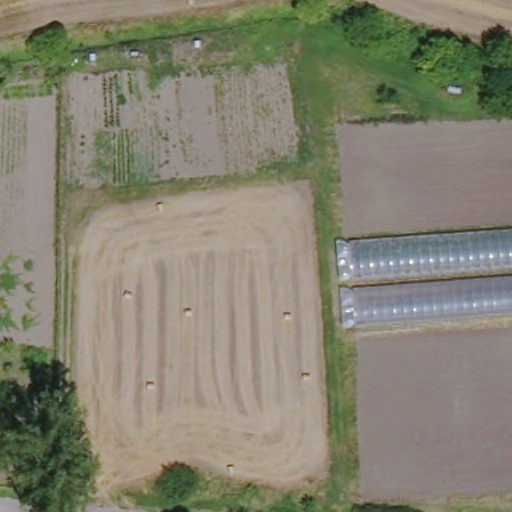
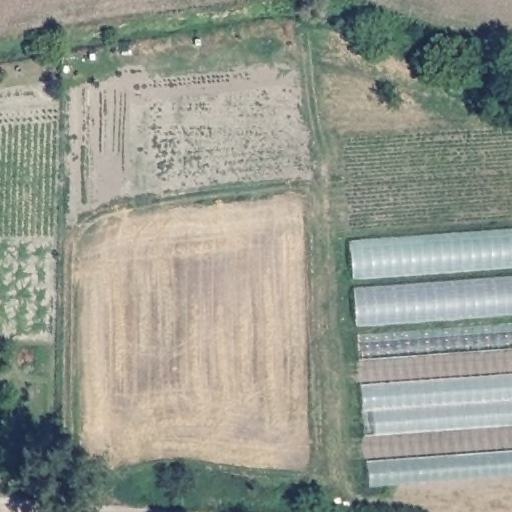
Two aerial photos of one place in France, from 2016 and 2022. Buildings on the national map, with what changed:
unchanged [(512,229),(512,268),(353,280),(351,240),(512,229)]
unchanged [(357,327),(355,290),(512,278),(512,317),(357,327)]
new [(357,336),(512,325),(512,476),(367,487),(357,336)]

